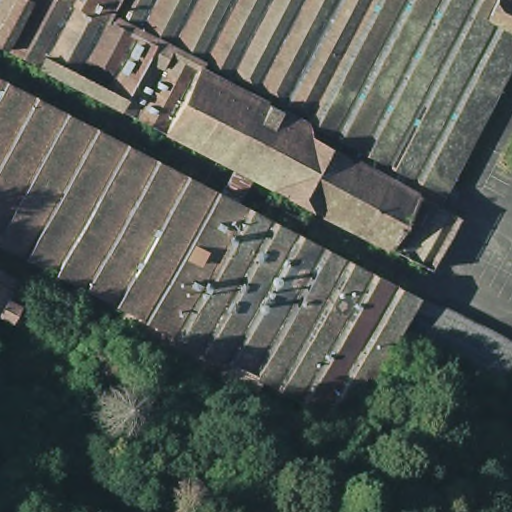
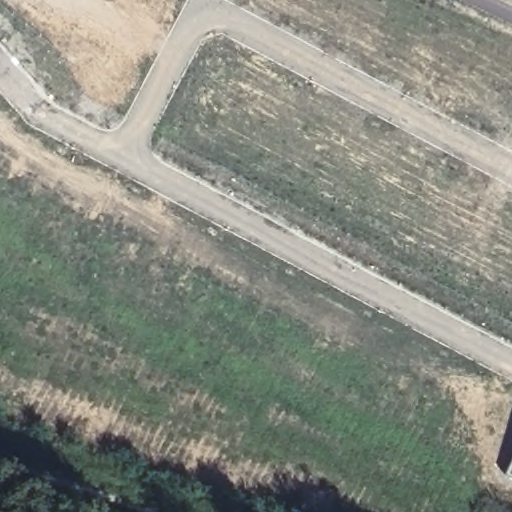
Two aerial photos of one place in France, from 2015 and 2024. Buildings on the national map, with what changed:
demolished [(443,208),(465,220),(435,272),(319,212),(160,131),(0,50),(0,0),(511,0),(512,0),(512,76),(443,208)]
demolished [(365,408),(353,431),(272,389),(269,387),(131,316),(23,259),(0,247),(0,80),(59,111),(94,128),(180,174),(207,187),(212,190),(282,226),(512,346),(512,401),(510,403),(399,345),(385,371),(394,376),(374,412),(365,408)]
demolished [(1,315),(0,315),(0,272),(18,281),(9,298),(22,305),(14,321),(1,315)]
demolished [(261,403),(252,398),(243,415),(221,403),(232,383),(125,327),(131,316),(269,387),(261,403)]
new [(512,462),(512,479),(505,475),(512,462)]

